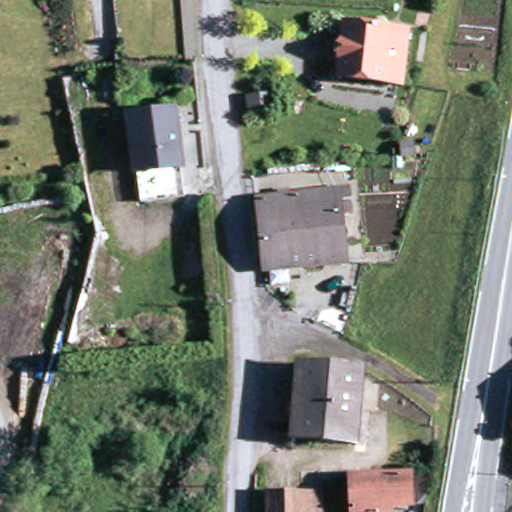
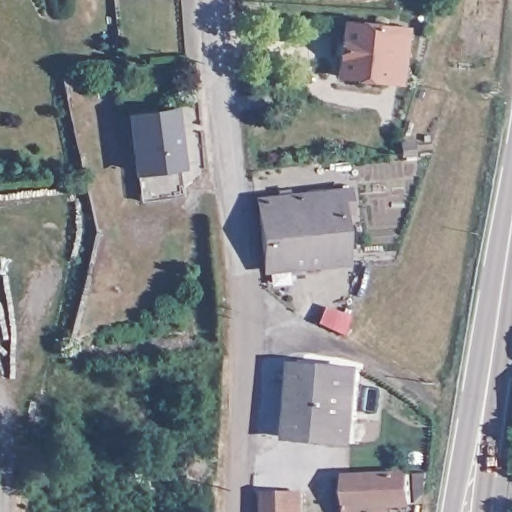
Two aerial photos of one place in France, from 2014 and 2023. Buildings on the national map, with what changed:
unchanged [(403,81),(340,77),(345,24),(407,29),(403,81)]
unchanged [(277,107),(251,109),(250,90),(275,88),(277,107)]
unchanged [(120,116),(118,107),(175,99),(183,156),(141,161),(135,115),(120,116)]
unchanged [(187,183),(145,189),(141,161),(183,156),(187,183)]
unchanged [(262,271),(257,197),(332,191),(347,189),(350,210),(335,211),(342,262),(262,271)]
unchanged [(287,441),(293,364),(353,368),(351,445),(287,441)]
unchanged [(383,512),(347,512),(345,473),(406,470),(407,492),(382,492),(383,512)]
unchanged [(274,512),(272,498),(310,494),(312,512),(274,512)]

